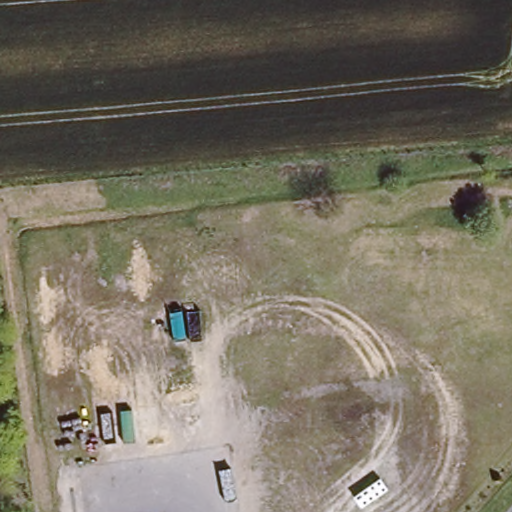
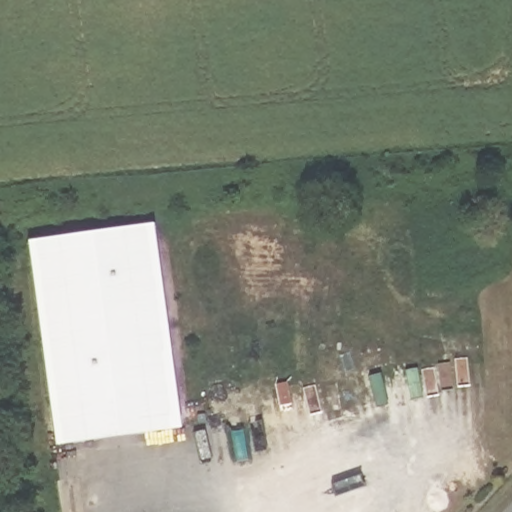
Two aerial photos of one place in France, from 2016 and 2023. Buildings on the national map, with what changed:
new [(25,241),(153,222),(180,428),(53,446),(25,241)]

